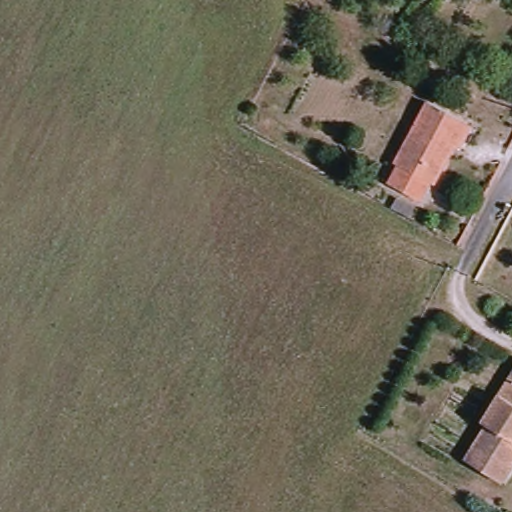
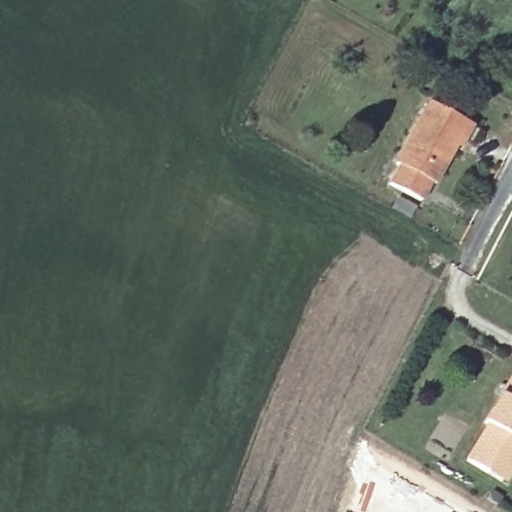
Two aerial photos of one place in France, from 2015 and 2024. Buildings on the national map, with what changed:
unchanged [(425,197),(392,178),(438,101),(472,121),(425,197)]
unchanged [(501,457),(492,472),(469,458),(488,425),(485,422),(512,379),(512,463),(501,457)]

